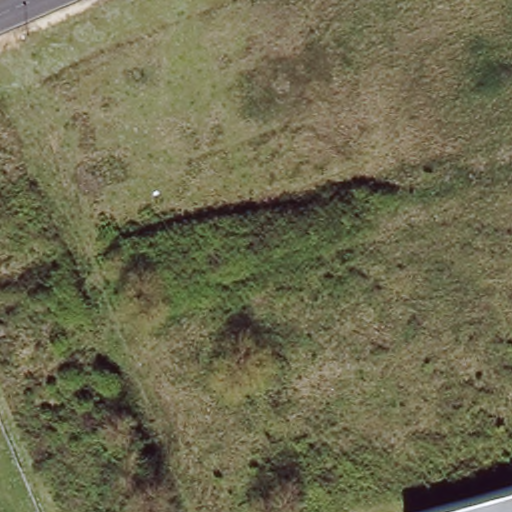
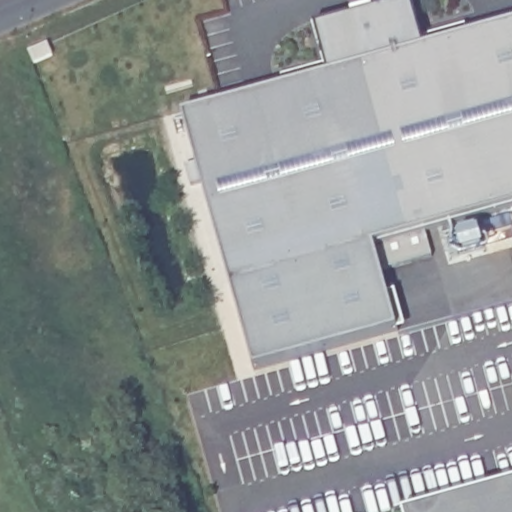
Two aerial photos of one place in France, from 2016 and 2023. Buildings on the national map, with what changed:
new [(429,230),(434,258),(383,272),(389,295),(398,291),(407,330),(399,333),(256,370),(184,115),(284,87),(328,75),(326,68),(324,63),(316,27),(413,0),(423,37),(466,25),(469,36),(512,24),(512,207),(429,230)]
new [(324,63),(328,75),(284,87),(281,75),(324,63)]
unchanged [(426,512),(512,487),(512,512),(426,512)]

